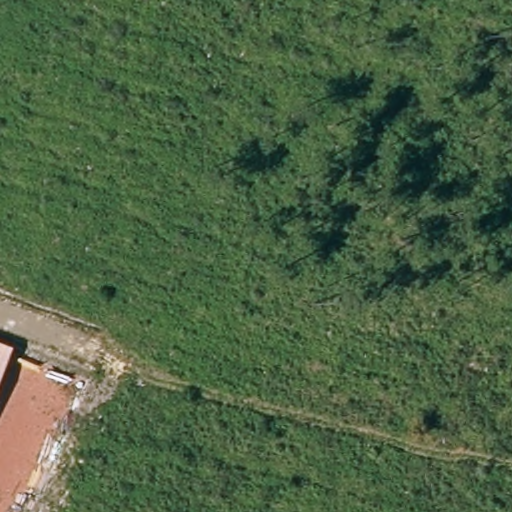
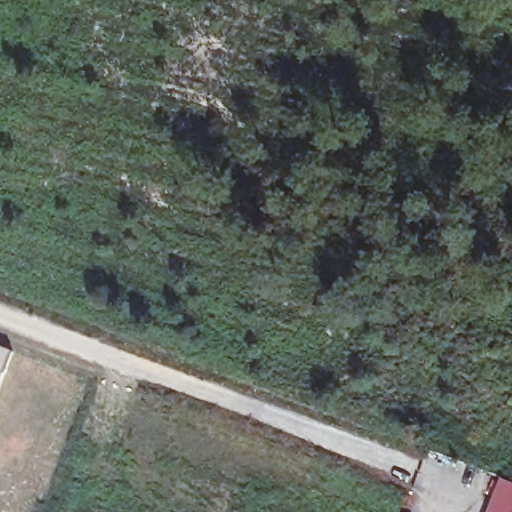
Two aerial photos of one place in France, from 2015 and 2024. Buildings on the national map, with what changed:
unchanged [(0,385),(0,344),(13,349),(0,385)]
new [(489,512),(504,475),(512,478),(512,512),(489,512)]

